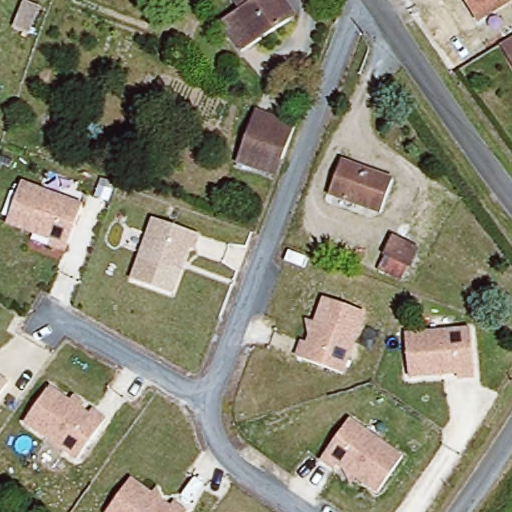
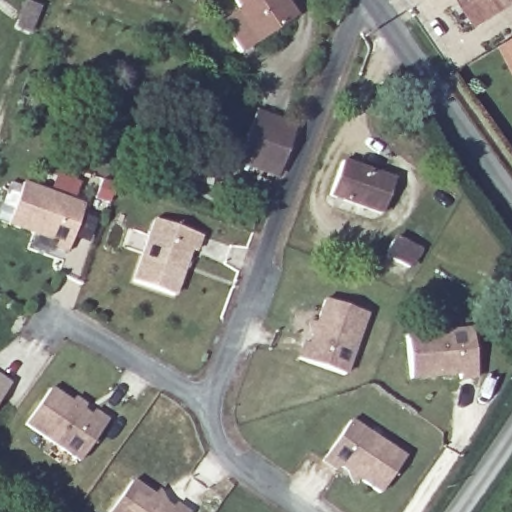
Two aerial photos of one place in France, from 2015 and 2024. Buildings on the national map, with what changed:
unchanged [(239,9),(234,0),(283,0),(294,16),(241,51),(220,20),(239,9)]
unchanged [(480,20),(468,0),(512,0),(480,20)]
unchanged [(11,29),(21,2),(35,7),(25,34),(11,29)]
unchanged [(508,59),(498,45),(512,37),(512,65),(508,59)]
unchanged [(235,165),(243,145),(255,112),(294,126),(282,160),(274,179),(235,165)]
unchanged [(339,162),(391,181),(379,214),(328,195),(339,162)]
unchanged [(82,204),(65,249),(50,244),(52,238),(7,221),(21,181),(82,204)]
unchanged [(151,217),(202,236),(197,253),(190,251),(175,295),(130,280),(151,217)]
unchanged [(393,240),(416,252),(407,270),(401,280),(378,269),(384,257),(393,240)]
unchanged [(341,376),(296,359),(301,345),(307,345),(323,300),(363,315),(341,376)]
unchanged [(469,332),(473,375),(424,378),(424,383),(408,385),(404,337),(469,332)]
unchanged [(0,395),(0,374),(10,381),(0,395)]
unchanged [(22,422),(47,387),(87,415),(90,411),(103,420),(75,460),(22,422)]
unchanged [(347,422),(400,461),(375,495),(335,466),(332,471),(319,461),(347,422)]
unchanged [(167,510),(170,505),(180,512),(105,512),(128,480),(167,510)]

